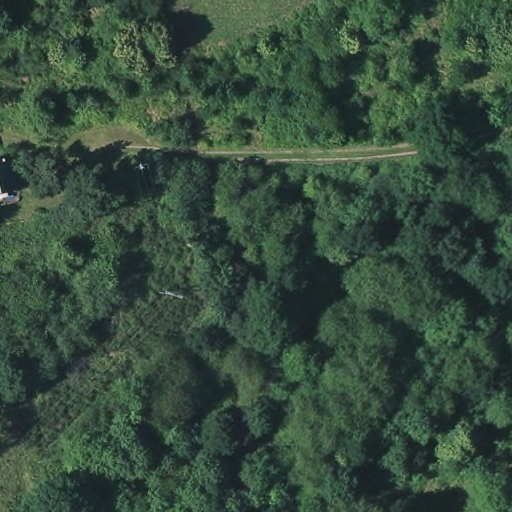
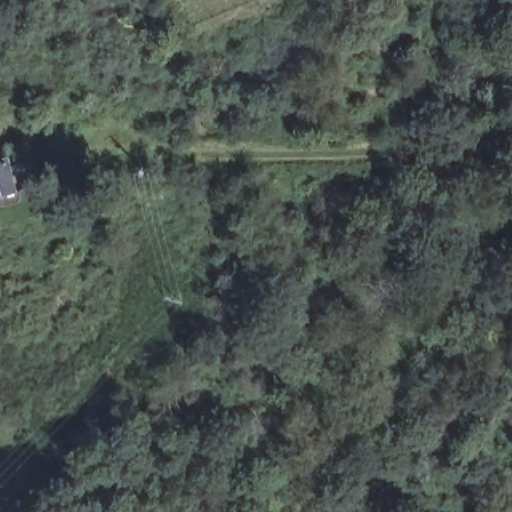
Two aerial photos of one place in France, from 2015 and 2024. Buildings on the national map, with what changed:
unchanged [(7,145),(10,154),(16,184),(0,188),(0,147),(7,145)]

